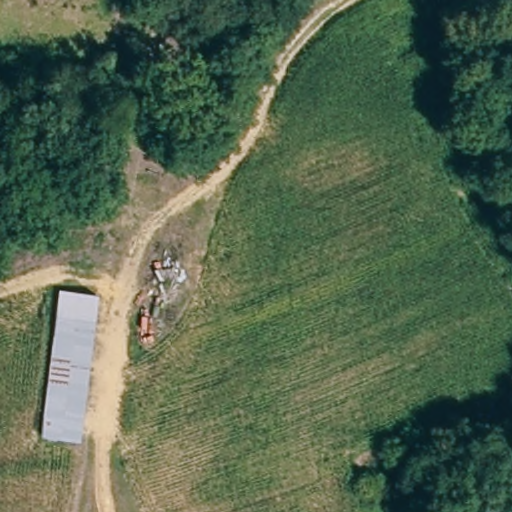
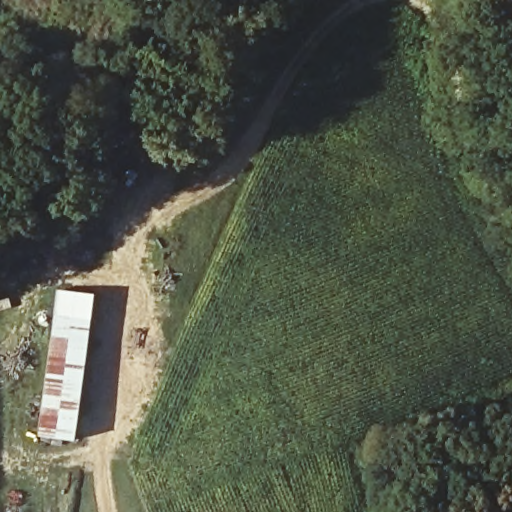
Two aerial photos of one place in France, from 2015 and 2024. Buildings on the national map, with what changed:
unchanged [(57,315),(95,317),(79,446),(39,438),(57,315)]

